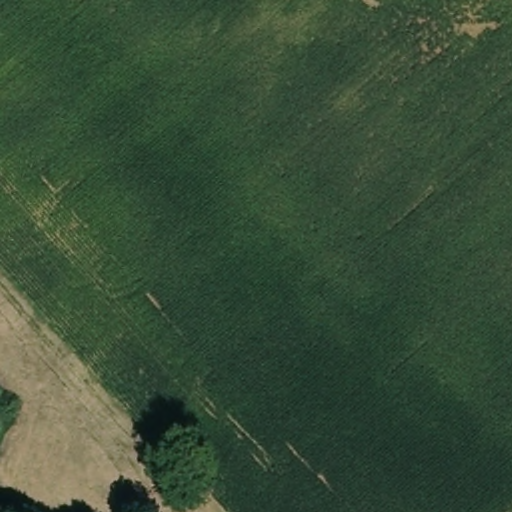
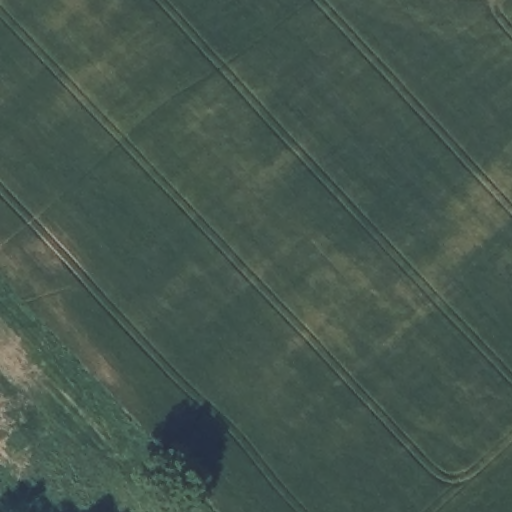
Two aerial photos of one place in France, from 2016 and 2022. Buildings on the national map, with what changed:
[]

